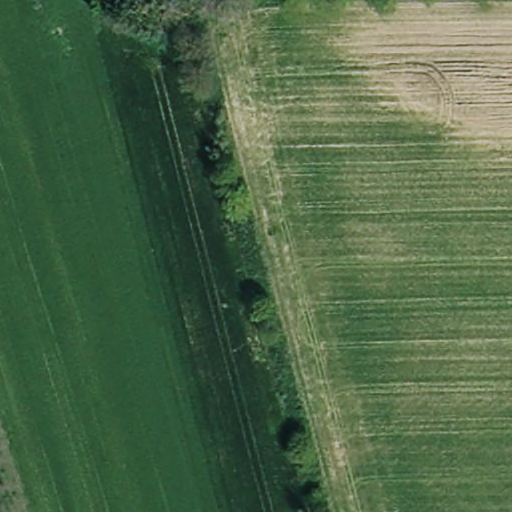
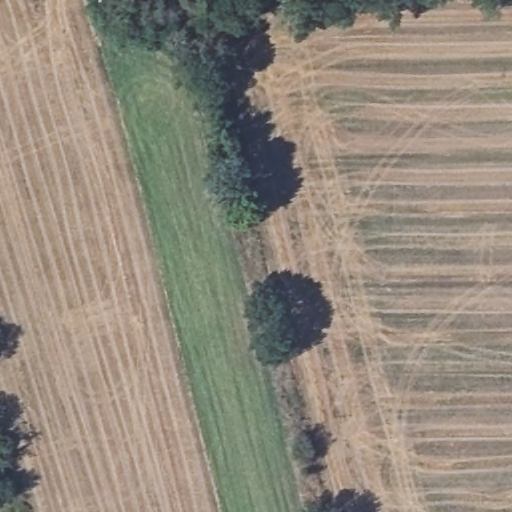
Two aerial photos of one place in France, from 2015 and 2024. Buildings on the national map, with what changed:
unchanged [(97,0),(121,0),(121,7),(97,8),(97,0)]

